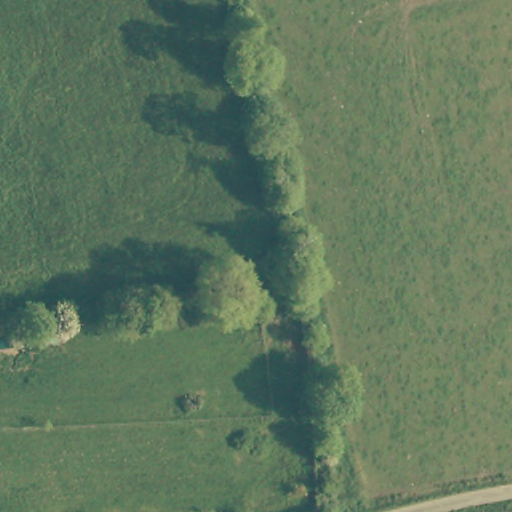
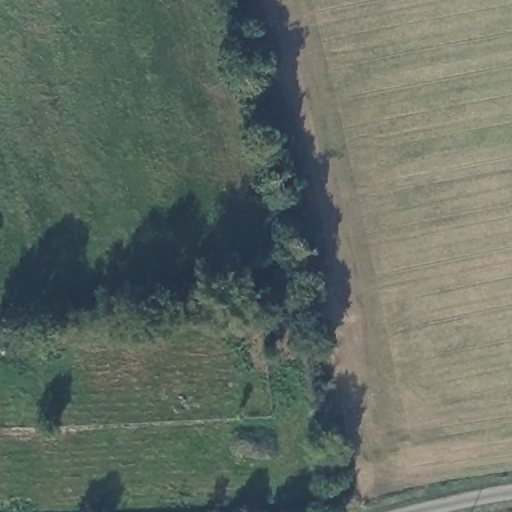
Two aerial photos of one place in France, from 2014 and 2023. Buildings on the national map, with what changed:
[]

